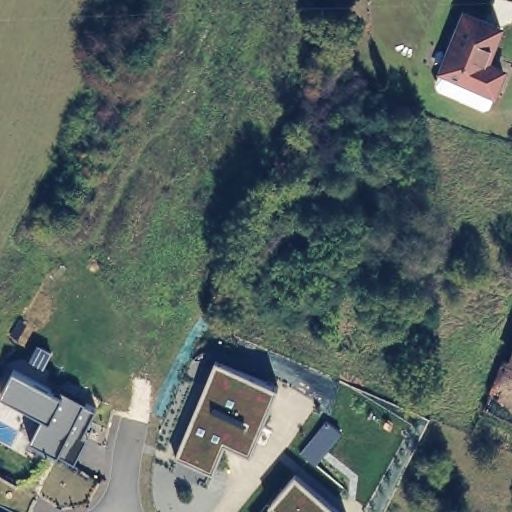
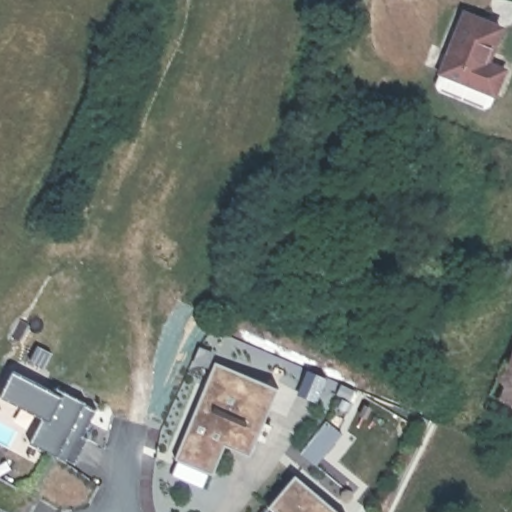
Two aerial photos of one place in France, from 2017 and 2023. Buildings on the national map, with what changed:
unchanged [(460,21),(494,34),(482,69),(498,76),(488,99),(438,78),(460,21)]
unchanged [(512,361),(512,419),(489,409),(509,360),(512,361)]
unchanged [(251,455),(223,444),(213,474),(176,459),(214,362),(279,390),(251,455)]
unchanged [(83,435),(89,439),(77,464),(30,444),(43,419),(0,396),(14,371),(58,392),(59,389),(98,410),(83,435)]
unchanged [(294,467),(348,512),(267,512),(261,507),(294,467)]

